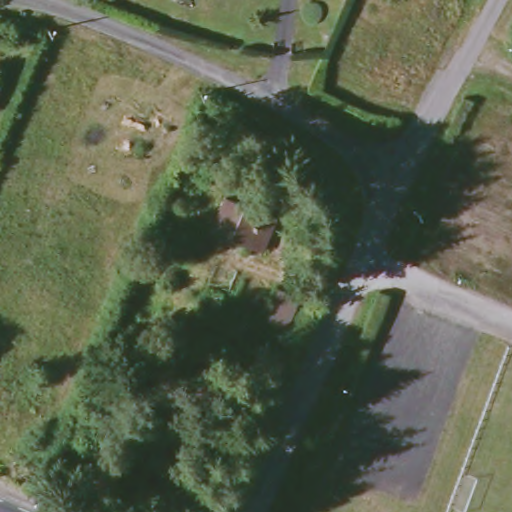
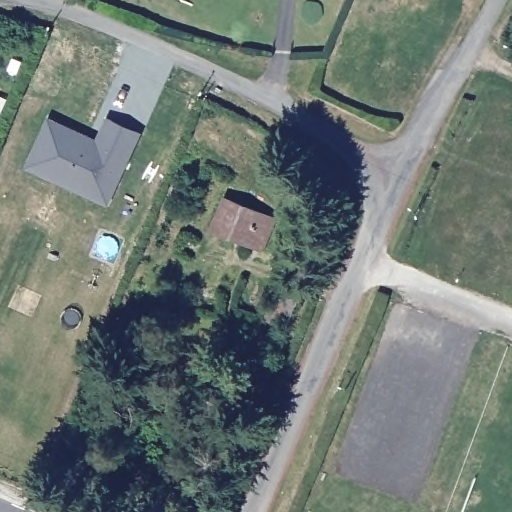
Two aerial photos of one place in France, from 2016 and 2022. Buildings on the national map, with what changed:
new [(27,168),(48,116),(96,139),(105,118),(140,131),(108,206),(27,168)]
unchanged [(275,217),(260,250),(248,245),(250,240),(232,232),(229,237),(213,229),(227,196),(275,217)]

